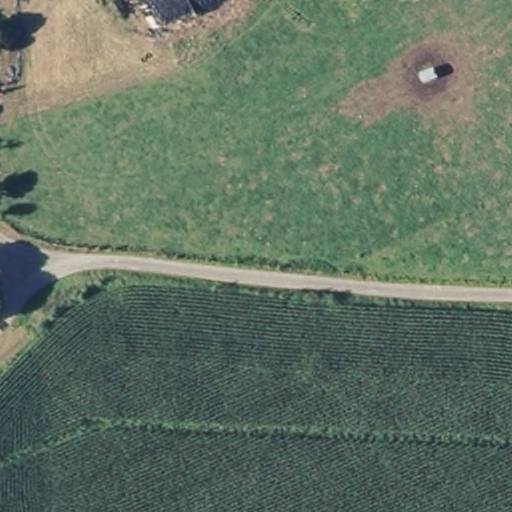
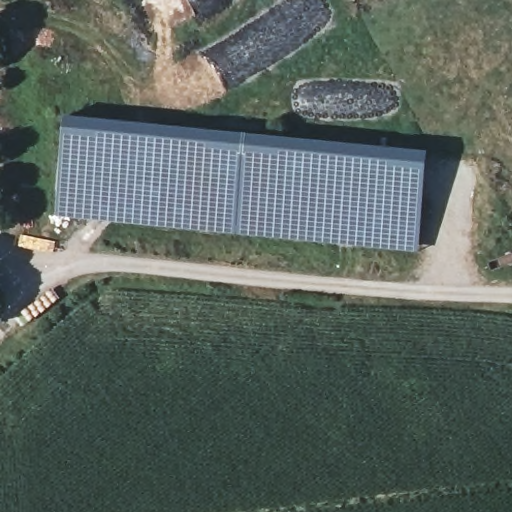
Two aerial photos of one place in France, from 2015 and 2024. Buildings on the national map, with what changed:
new [(68,117),(428,154),(418,252),(58,217),(68,117)]

